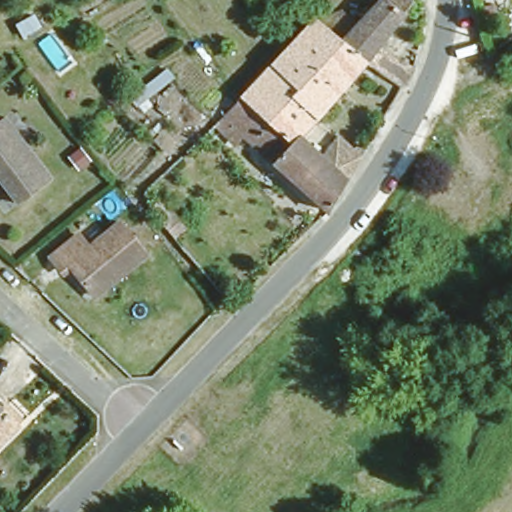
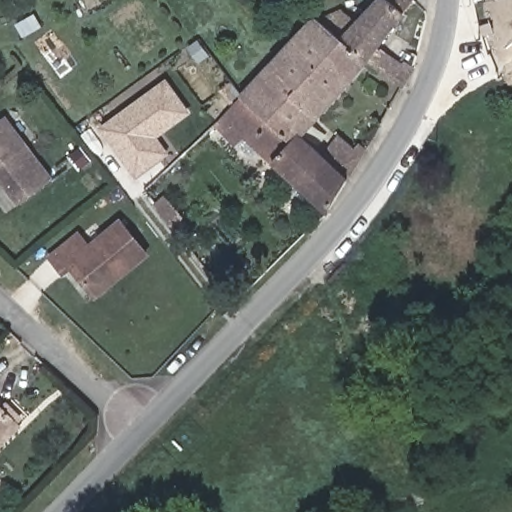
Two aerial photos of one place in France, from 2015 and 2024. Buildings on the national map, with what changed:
unchanged [(375,2),(377,0),(410,0),(377,44),(399,62),(410,51),(416,54),(398,85),(366,57),(341,35),(365,11),(375,2)]
unchanged [(315,14),(318,17),(344,1),(365,11),(341,35),(366,57),(302,133),(291,143),(239,93),(315,14)]
new [(164,82),(186,110),(150,137),(162,154),(136,173),(102,127),(164,82)]
unchanged [(332,198),(323,207),(238,126),(226,136),(211,120),(239,93),(291,143),(302,133),(321,151),(345,176),(332,198)]
unchanged [(50,170),(17,197),(0,175),(0,109),(1,108),(50,170)]
unchanged [(321,151),(339,131),(350,140),(356,133),(366,140),(345,176),(321,151)]
unchanged [(187,214),(175,223),(163,207),(174,199),(187,214)]
unchanged [(87,291),(67,265),(59,271),(50,259),(77,236),(87,248),(119,224),(144,255),(119,276),(93,298),(87,291)]
unchanged [(2,406),(18,426),(0,443),(0,408),(2,406)]

